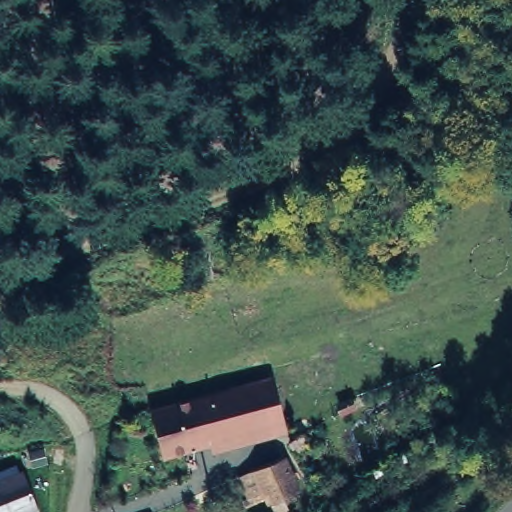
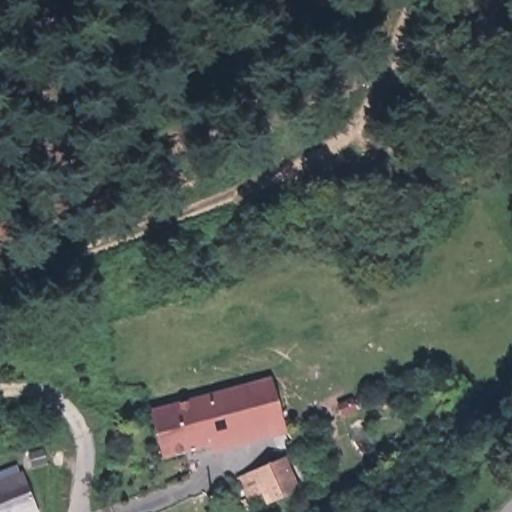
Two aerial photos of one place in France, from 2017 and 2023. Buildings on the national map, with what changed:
unchanged [(277,417),(163,452),(151,408),(264,373),(277,417)]
unchanged [(290,490),(263,502),(249,472),(278,458),(290,490)]
unchanged [(40,511),(37,512),(0,512),(0,477),(23,470),(40,511)]

